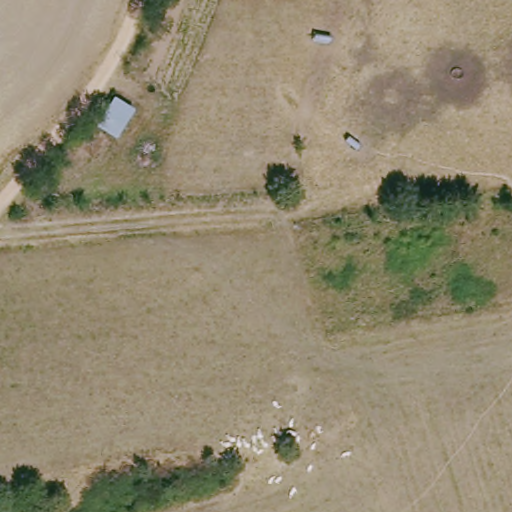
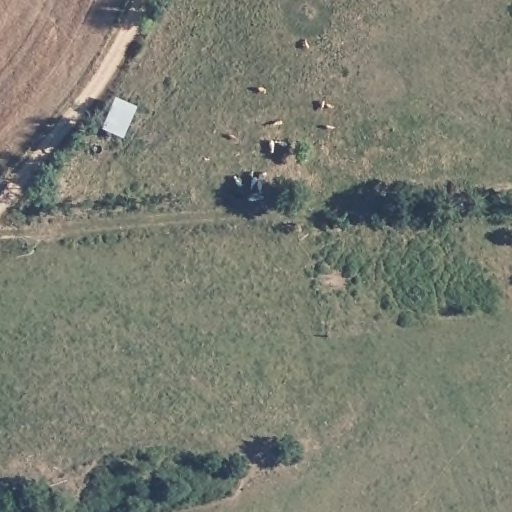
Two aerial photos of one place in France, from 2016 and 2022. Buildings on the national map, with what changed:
unchanged [(119,96),(138,107),(123,134),(103,121),(119,96)]

